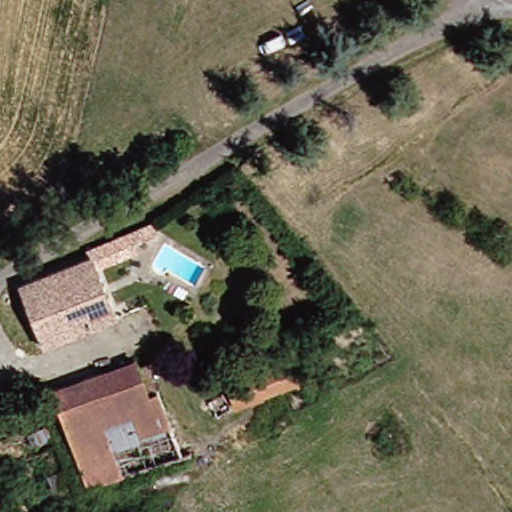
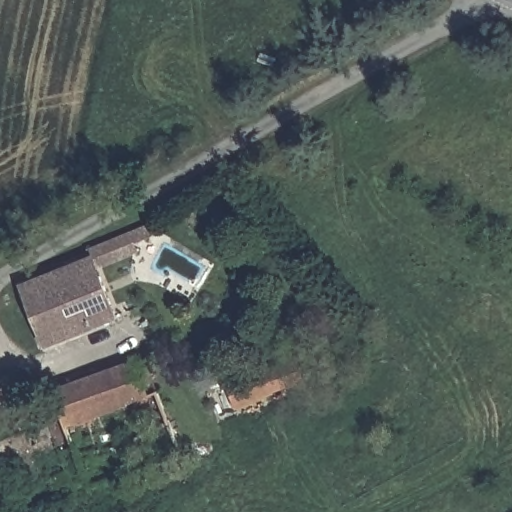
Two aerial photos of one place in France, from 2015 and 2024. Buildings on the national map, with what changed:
unchanged [(103,254),(127,313),(55,343),(30,282),(103,254)]
unchanged [(66,385),(128,363),(142,397),(80,419),(66,385)]
unchanged [(305,363),(311,384),(255,401),(249,382),(305,363)]
unchanged [(142,397),(155,393),(182,459),(105,484),(80,419),(142,397)]

